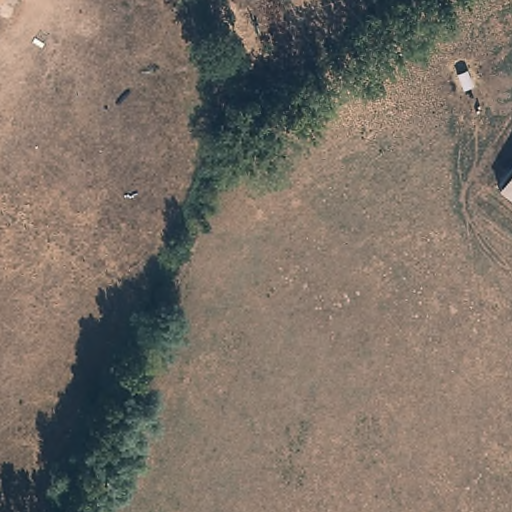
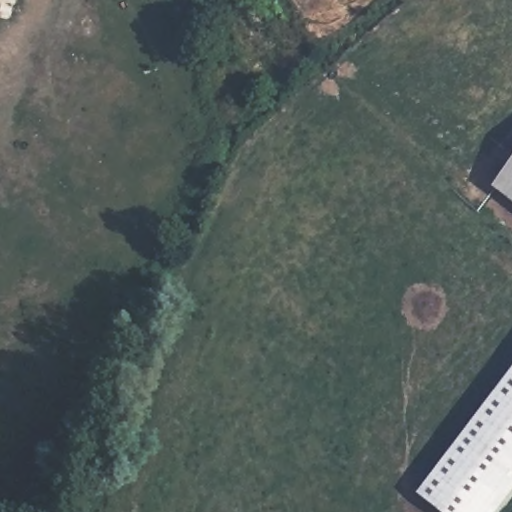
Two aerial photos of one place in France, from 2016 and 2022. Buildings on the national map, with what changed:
unchanged [(512,176),(512,198),(503,193),(512,176)]
new [(512,495),(499,512),(443,512),(418,495),(512,372),(512,495)]

